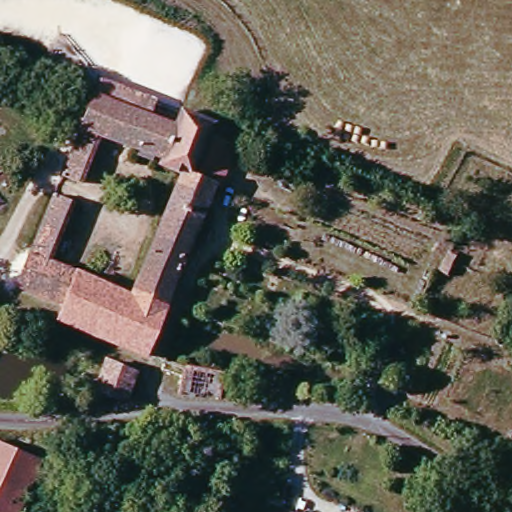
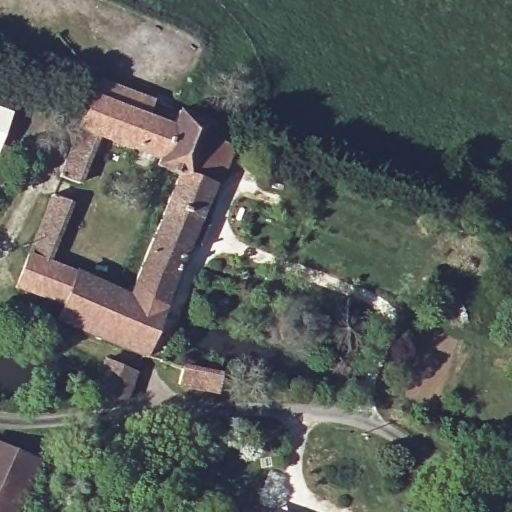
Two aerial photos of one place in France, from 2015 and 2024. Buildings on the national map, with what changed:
unchanged [(194,175),(180,172),(160,166),(163,159),(101,134),(81,182),(65,176),(98,82),(214,121),(194,175)]
new [(0,143),(0,107),(11,111),(0,143)]
unchanged [(201,245),(192,242),(165,308),(131,294),(180,172),(194,175),(214,121),(242,133),(222,184),(215,181),(201,218),(210,221),(201,245)]
unchanged [(50,260),(131,294),(165,308),(146,358),(58,323),(64,306),(19,288),(56,193),(74,199),(50,260)]
unchanged [(108,364),(134,372),(128,399),(100,392),(108,364)]
unchanged [(182,397),(164,387),(170,373),(171,366),(222,370),(220,397),(182,397)]
unchanged [(0,444),(41,464),(17,512),(0,512),(0,444)]
unchanged [(272,508),(286,512),(271,512),(272,508)]

